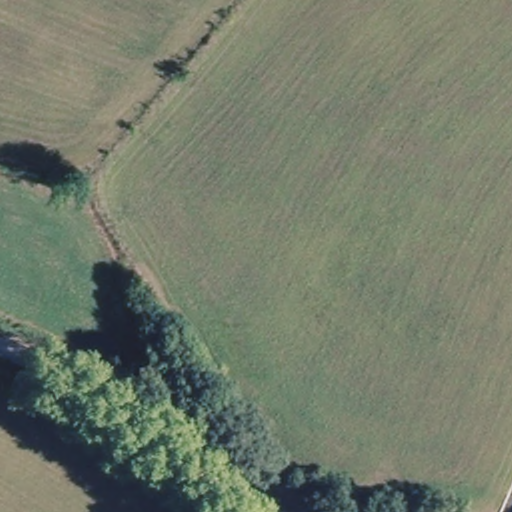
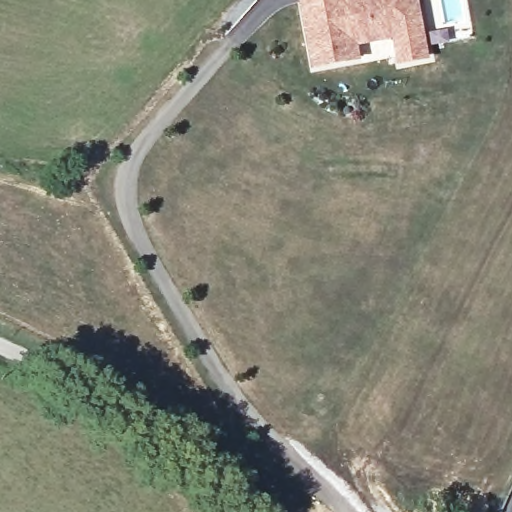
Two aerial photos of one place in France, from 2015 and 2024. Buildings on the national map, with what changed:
new [(394,40),(361,46),(363,61),(313,70),(301,0),(421,0),(431,60),(400,66),(394,40)]

